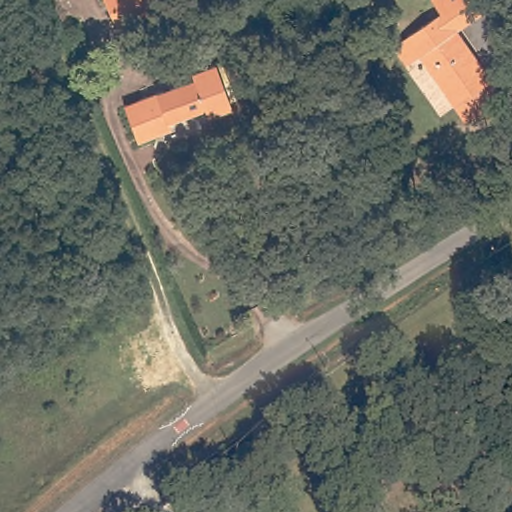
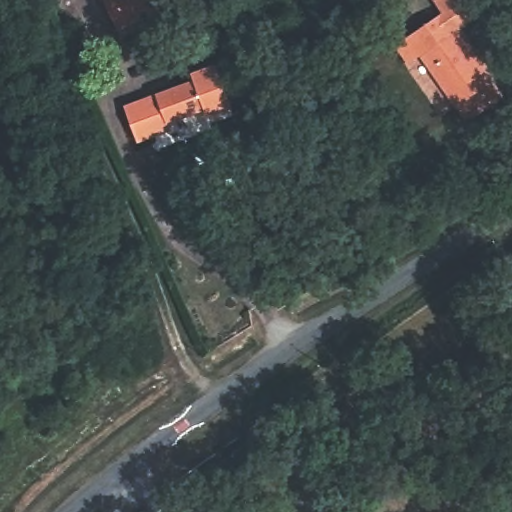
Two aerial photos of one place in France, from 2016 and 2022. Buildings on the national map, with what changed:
unchanged [(108,0),(157,0),(158,2),(160,7),(145,14),(139,17),(121,24),(116,15),(108,0)]
unchanged [(462,102),(461,102),(436,67),(426,54),(415,61),(401,42),(412,36),(446,13),(436,0),(474,0),(486,15),(460,32),(495,81),(493,82),(504,99),(473,119),(462,102)]
unchanged [(166,90),(192,80),(189,73),(214,65),(232,106),(210,114),(207,114),(204,107),(180,116),(170,119),(174,126),(151,134),(140,137),(125,104),(132,101),(166,90)]

